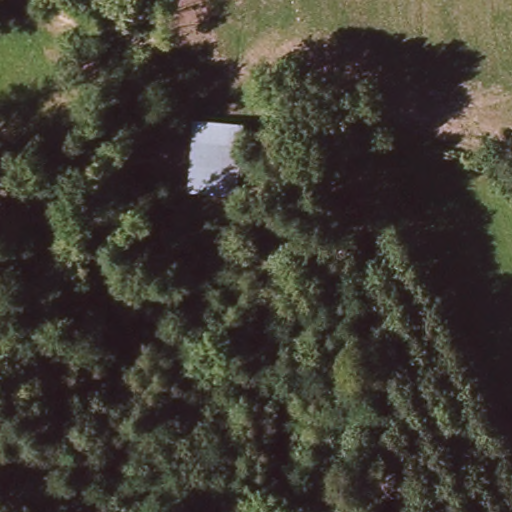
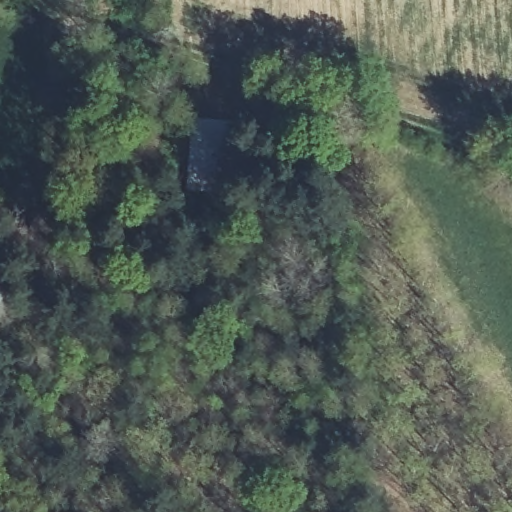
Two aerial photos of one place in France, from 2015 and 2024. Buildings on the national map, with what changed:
unchanged [(241,123),(235,191),(190,186),(195,117),(241,123)]

